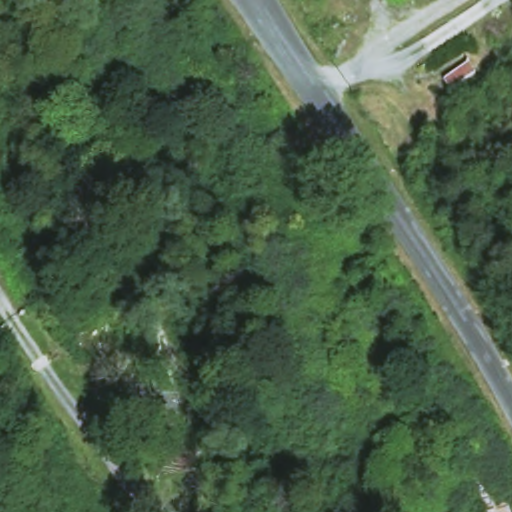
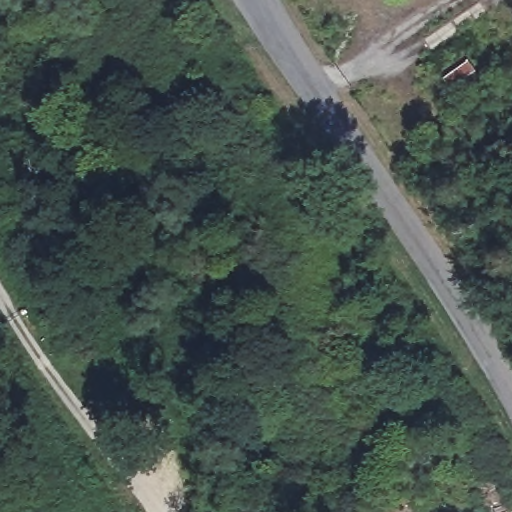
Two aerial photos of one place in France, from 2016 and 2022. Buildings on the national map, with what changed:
unchanged [(512,512),(492,512),(481,487),(504,477),(512,497),(512,512)]

